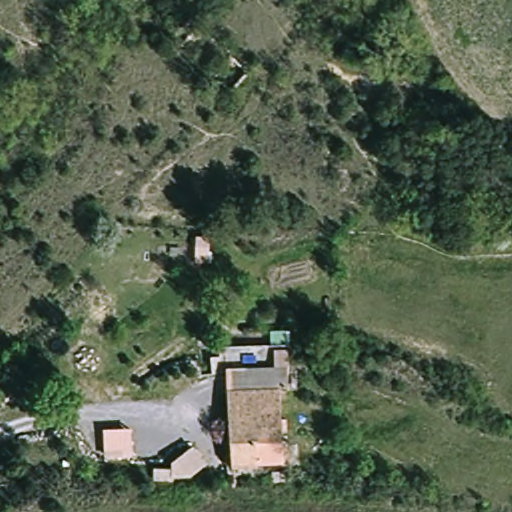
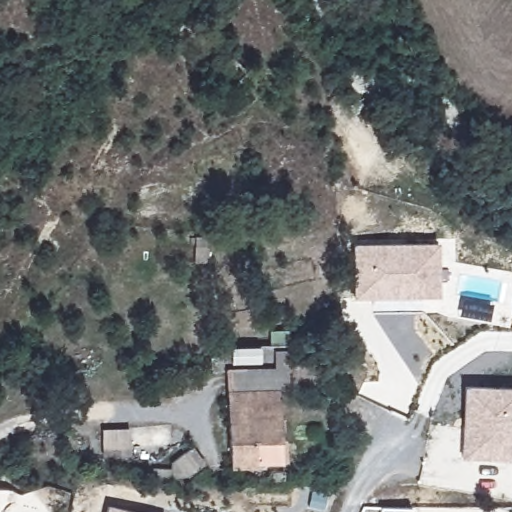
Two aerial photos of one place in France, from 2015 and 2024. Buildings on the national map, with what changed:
new [(354,299),(351,244),(437,241),(439,296),(354,299)]
unchanged [(218,341),(267,340),(268,351),(218,353),(218,341)]
unchanged [(275,368),(275,364),(284,364),(285,390),(276,390),(278,444),(253,445),(254,469),(228,471),(223,369),(275,368)]
new [(512,462),(461,460),(463,386),(512,388),(512,462)]
unchanged [(150,470),(171,470),(171,462),(190,448),(204,466),(187,480),(172,481),(171,482),(161,482),(150,482),(150,470)]
new [(138,512),(105,512),(107,505),(138,512)]
new [(412,508),(412,512),(381,512),(381,507),(412,508)]

